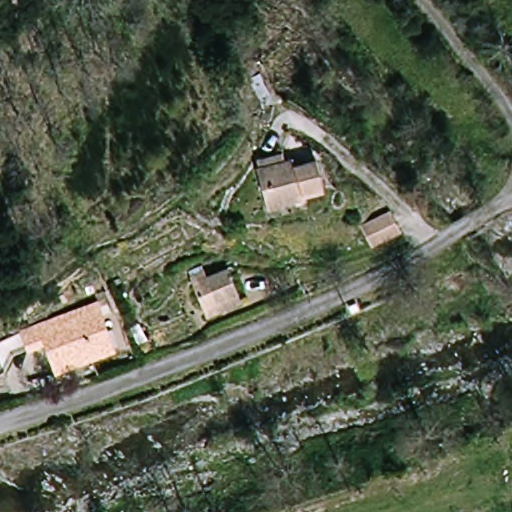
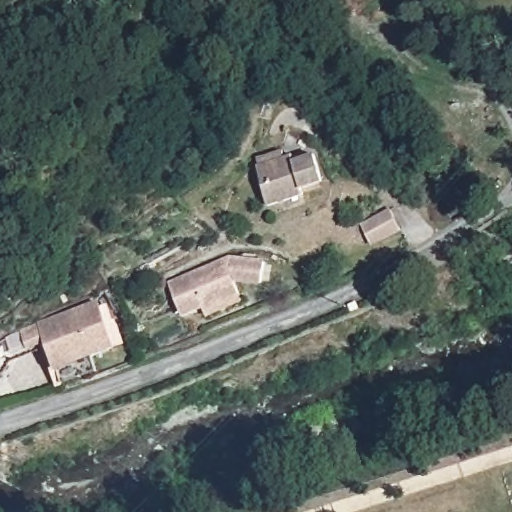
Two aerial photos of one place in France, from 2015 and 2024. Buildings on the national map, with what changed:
unchanged [(311,191),(312,196),(277,206),(265,168),(272,166),(270,158),(288,152),(290,161),(303,157),(305,162),(326,155),(335,183),(311,191)]
unchanged [(404,228),(377,242),(365,220),(393,206),(404,228)]
unchanged [(214,274),(232,266),(245,297),(212,312),(195,274),(210,266),(214,274)]
unchanged [(42,320),(98,297),(117,340),(80,356),(61,364),(58,357),(42,320)]

